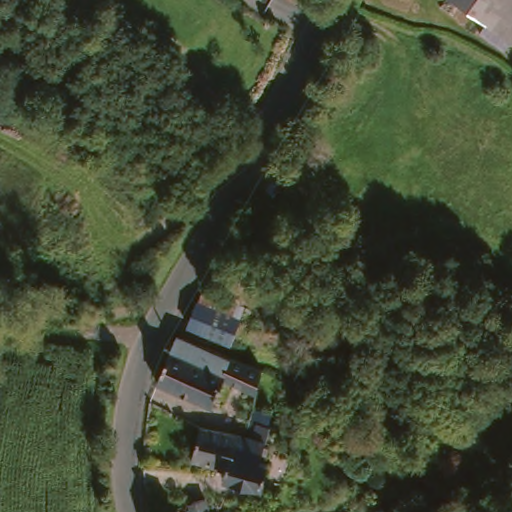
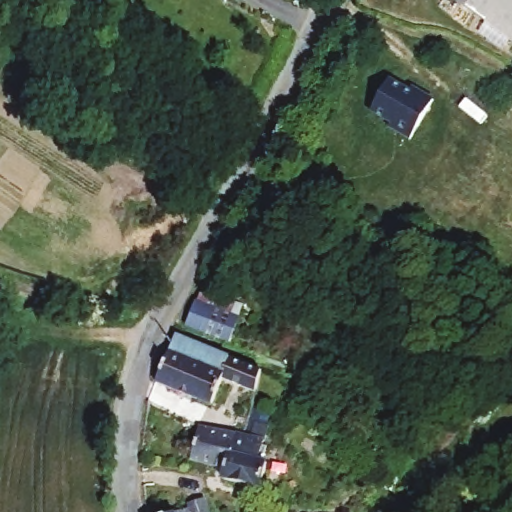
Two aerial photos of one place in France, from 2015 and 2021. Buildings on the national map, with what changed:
unchanged [(512,42),(457,0),(512,0),(512,42)]
new [(388,129),(389,123),(372,113),(390,79),(410,90),(413,86),(434,99),(410,140),(388,129)]
unchanged [(238,302),(225,338),(178,318),(195,282),(238,302)]
unchanged [(267,380),(254,406),(236,400),(242,385),(232,381),(224,406),(209,400),(208,403),(159,376),(173,330),(176,327),(267,380)]
unchanged [(199,422),(236,434),(243,435),(249,425),(269,430),(263,450),(271,452),(269,461),(259,460),(257,469),(266,470),(260,495),(221,486),(224,473),(188,465),(199,422)]
unchanged [(203,500),(207,512),(180,512),(188,510),(186,504),(203,500)]

